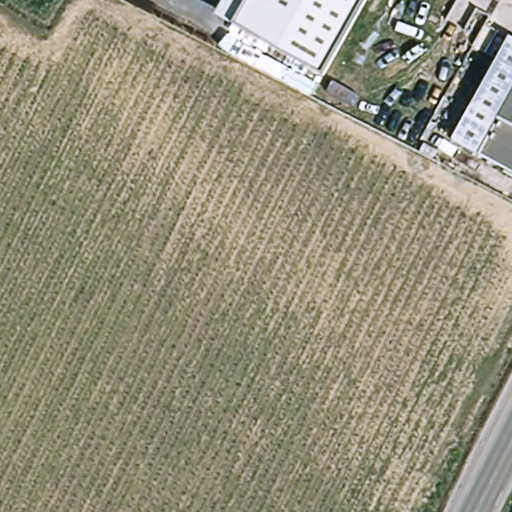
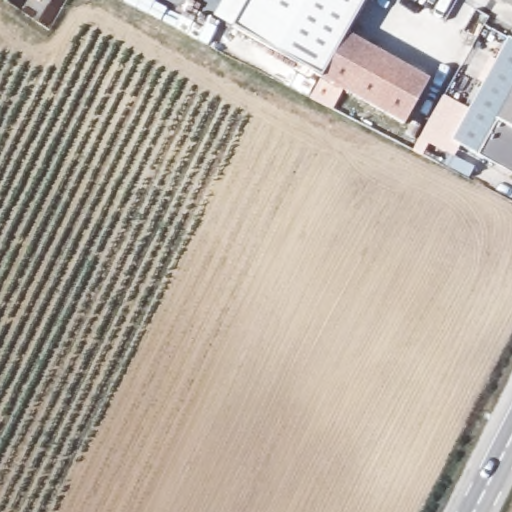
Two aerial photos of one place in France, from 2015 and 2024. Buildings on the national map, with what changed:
unchanged [(234,27),(216,16),(225,0),(366,0),(322,77),(234,27)]
unchanged [(512,0),(512,7),(500,0),(512,0)]
new [(345,36),(419,77),(394,121),(321,80),(345,36)]
unchanged [(510,40),(512,42),(512,176),(454,144),(510,40)]

